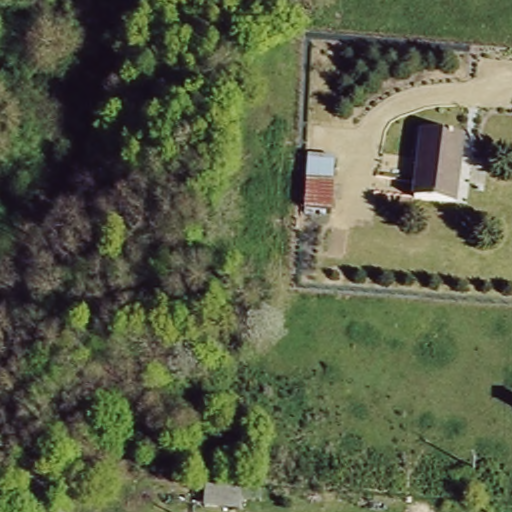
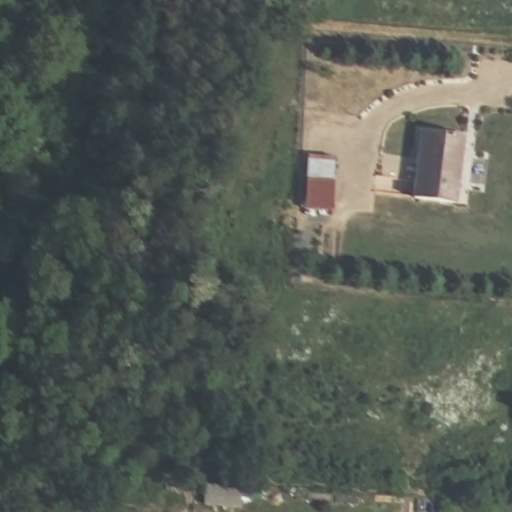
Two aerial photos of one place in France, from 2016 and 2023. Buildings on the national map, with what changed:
unchanged [(419,126),(459,127),(457,170),(417,167),(419,126)]
unchanged [(330,161),(330,181),(330,212),(301,210),(303,180),(307,156),(330,161)]
unchanged [(457,170),(455,199),(415,197),(417,167),(457,170)]
unchanged [(203,487),(240,490),(239,511),(202,507),(203,487)]

